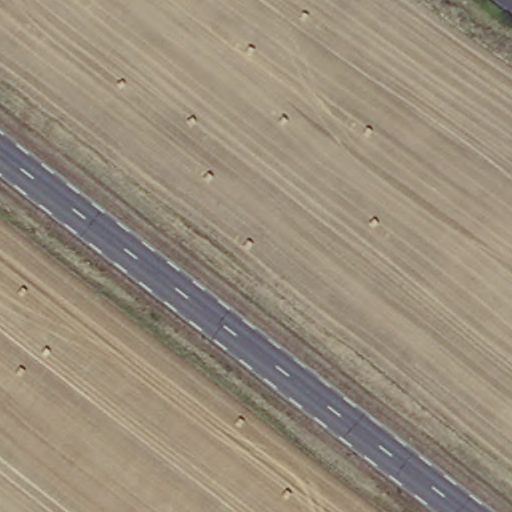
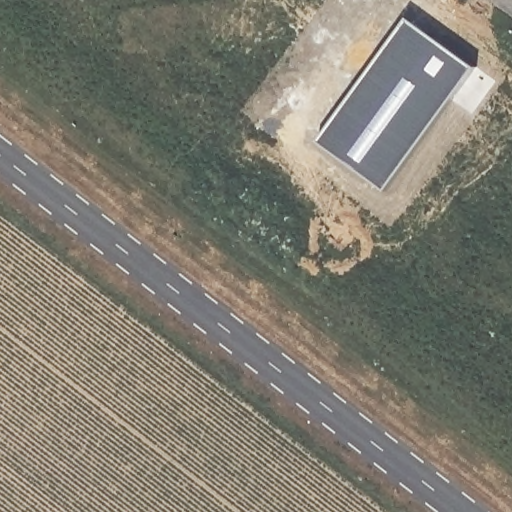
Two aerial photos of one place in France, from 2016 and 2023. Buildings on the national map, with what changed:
new [(408,14),(483,69),(387,203),(314,145),(408,14)]

